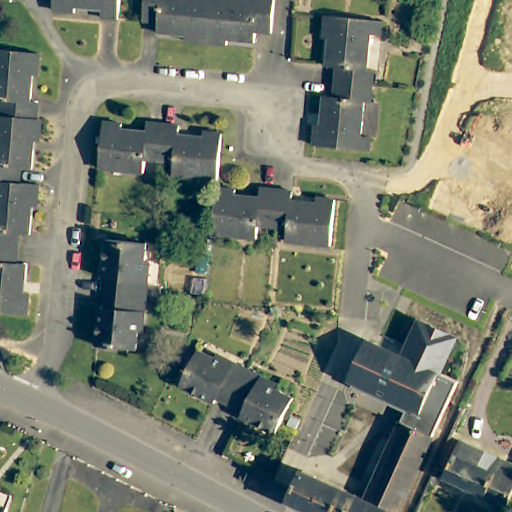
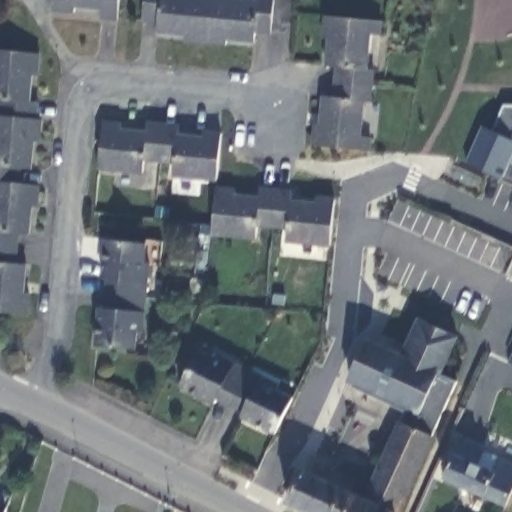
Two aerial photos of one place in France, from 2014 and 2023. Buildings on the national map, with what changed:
unchanged [(120,19),(105,18),(105,9),(77,6),(77,11),(57,10),(57,0),(122,0),(120,19)]
unchanged [(206,42),(185,40),(185,33),(157,30),(158,19),(142,17),(144,0),(210,0),(206,42)]
unchanged [(257,0),(258,0),(275,0),(272,30),(256,29),(255,40),(227,37),(227,44),(206,42),(210,0),(254,0),(257,0)]
unchanged [(341,65),(331,63),(335,36),(328,35),(330,10),(387,17),(385,31),(377,29),(372,68),(378,69),(376,85),(340,81),(341,65)]
unchanged [(0,93),(0,43),(43,47),(41,70),(33,69),(32,96),(2,93),(0,93)]
unchanged [(373,100),(367,100),(363,133),(372,134),(371,149),(317,142),(319,119),(323,120),(327,94),(338,95),(340,81),(376,85),(373,100)]
unchanged [(40,96),(39,112),(45,112),(44,134),(37,133),(35,161),(22,160),(0,159),(0,108),(2,93),(32,96),(40,96)]
new [(482,123),(493,129),(506,103),(512,104),(512,183),(464,162),(482,123)]
unchanged [(144,157),(142,168),(99,162),(103,115),(121,117),(121,122),(146,125),(147,116),(165,118),(160,158),(144,157)]
unchanged [(165,118),(181,120),(180,129),(202,132),(202,128),(223,131),(217,178),(172,173),(172,159),(160,158),(165,118)]
unchanged [(21,177),(41,178),(39,204),(32,203),(30,230),(19,231),(17,245),(0,244),(0,159),(22,160),(21,177)]
unchanged [(259,224),(258,237),(212,231),(217,185),(236,187),(235,193),(261,195),(262,186),(277,188),(273,226),(259,224)]
unchanged [(277,188),(292,190),(292,200),(317,202),(317,197),(337,199),(332,244),(287,239),(287,227),(273,226),(277,188)]
unchanged [(105,274),(99,273),(103,234),(142,239),(140,256),(146,256),(142,294),(103,289),(105,274)]
unchanged [(16,260),(29,261),(27,287),(32,288),(31,310),(0,308),(0,244),(17,245),(16,260)]
unchanged [(142,294),(138,328),(132,328),(130,345),(92,340),(96,303),(102,303),(103,289),(142,294)]
unchanged [(366,492),(407,399),(387,390),(385,395),(378,392),(376,397),(347,385),(349,380),(343,377),(346,372),(345,372),(347,368),(354,352),(358,343),(359,343),(362,338),(398,354),(411,326),(410,326),(414,317),(452,334),(448,343),(447,342),(435,370),(453,378),(446,394),(394,512),(324,512),(288,496),(302,464),(366,492)]
unchanged [(216,392),(214,398),(182,380),(200,345),(217,353),(219,349),(247,365),(230,400),(216,392)]
new [(512,354),(512,361),(510,360),(512,354)]
unchanged [(278,382),(277,385),(293,395),(276,430),(241,411),(243,407),(230,400),(247,365),(278,382)]
unchanged [(512,506),(511,508),(448,478),(451,472),(444,470),(446,466),(458,438),(512,463),(512,506)]
unchanged [(2,512),(0,512),(0,501),(5,503),(2,512)]

